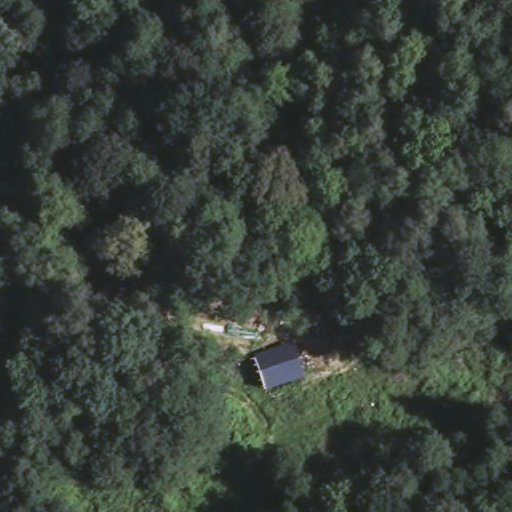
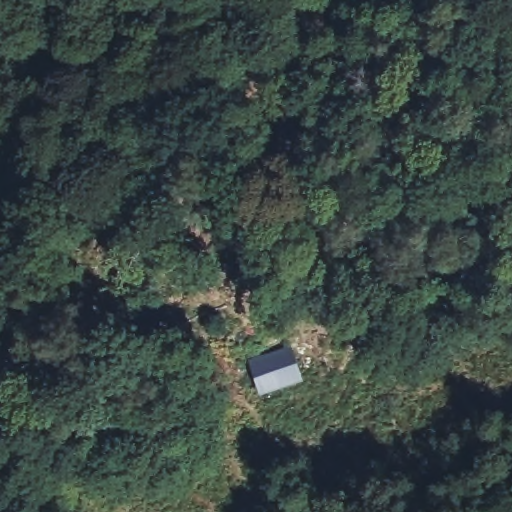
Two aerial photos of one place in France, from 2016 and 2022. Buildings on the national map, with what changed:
unchanged [(264,389),(260,354),(301,348),(305,381),(264,389)]

